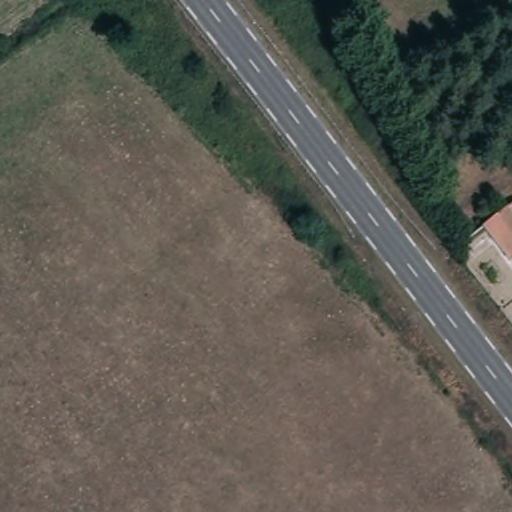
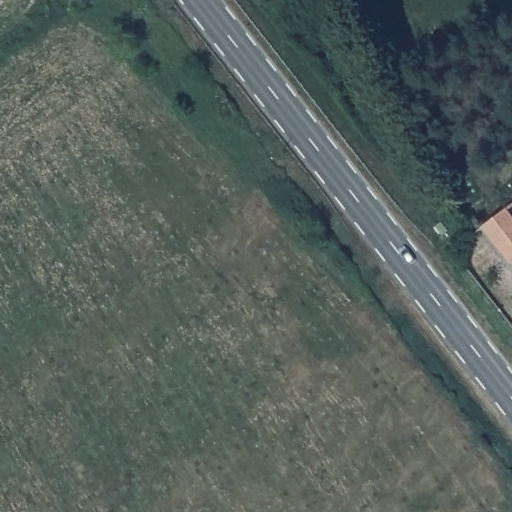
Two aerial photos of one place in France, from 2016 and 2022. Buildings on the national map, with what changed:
unchanged [(512,210),(512,256),(490,225),(512,210)]

